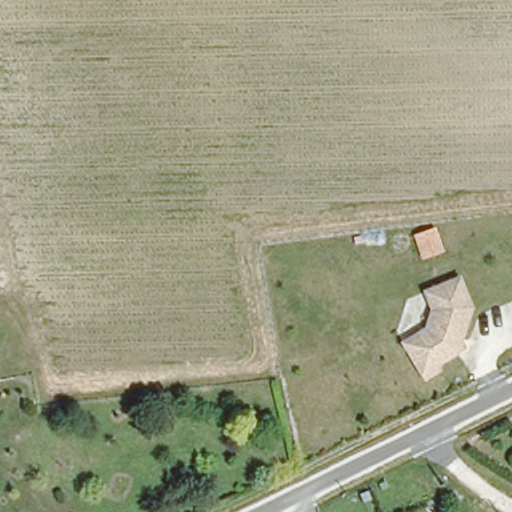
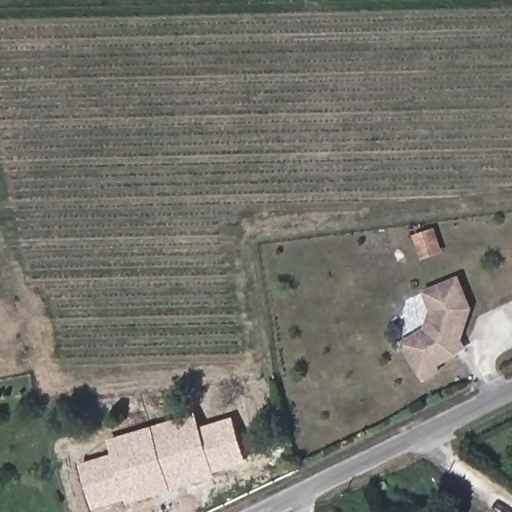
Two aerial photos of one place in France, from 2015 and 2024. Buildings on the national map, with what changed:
unchanged [(436,364),(440,369),(424,378),(403,342),(427,328),(432,309),(426,291),(460,278),(471,308),(461,340),(460,341),(456,353),(436,364)]
new [(109,438),(197,412),(201,426),(234,416),(248,464),(214,473),(216,478),(126,505),(125,499),(90,510),(76,465),(114,454),(109,438)]

